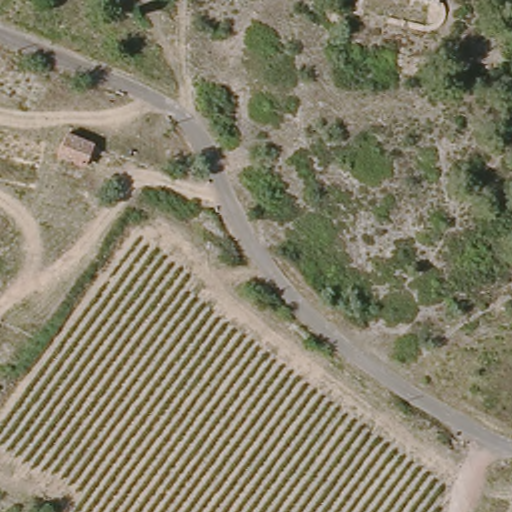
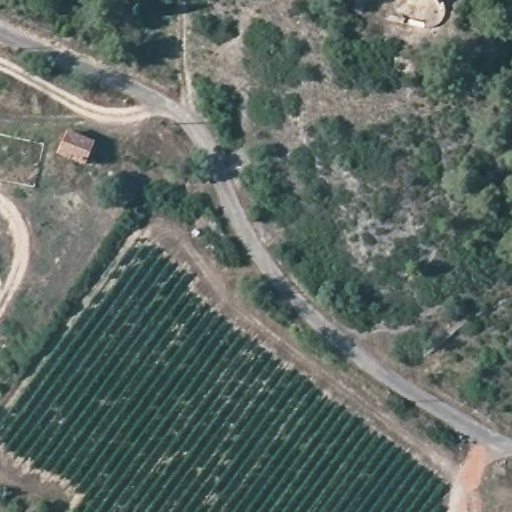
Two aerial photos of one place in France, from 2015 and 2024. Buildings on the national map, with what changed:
unchanged [(63,159),(73,133),(95,144),(86,168),(63,159)]

